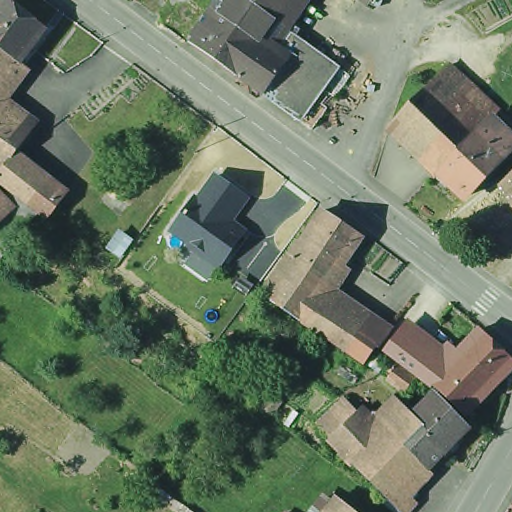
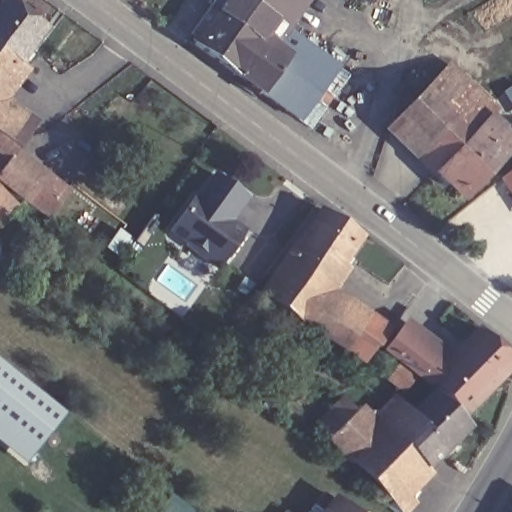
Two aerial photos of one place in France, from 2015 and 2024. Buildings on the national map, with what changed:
unchanged [(43,120),(23,152),(73,194),(49,219),(26,207),(0,267),(0,0),(11,0),(53,27),(13,100),(43,120)]
demolished [(174,0),(194,0),(204,7),(182,40),(158,23),(174,0)]
unchanged [(214,0),(224,0),(249,0),(288,0),(274,19),(259,39),(277,51),(291,33),(335,65),(296,119),(191,44),(197,35),(191,31),(212,0),(214,0)]
unchanged [(339,11),(322,0),(347,0),(339,11)]
unchanged [(496,110),(512,128),(512,158),(468,204),(436,175),(389,129),(451,60),(496,110)]
unchanged [(348,74),(309,128),(296,119),(335,65),(348,74)]
unchanged [(497,185),(512,171),(512,208),(497,185)]
unchanged [(209,254),(174,229),(195,199),(199,202),(218,175),(245,195),(229,217),(231,225),(244,234),(228,256),(223,263),(209,254)]
unchanged [(300,237),(319,209),(358,234),(338,263),(300,237)]
unchanged [(315,296),(374,335),(358,359),(261,295),(300,237),(338,263),(315,296)]
unchanged [(477,333),(512,366),(512,368),(492,390),(457,355),(477,333)]
unchanged [(439,375),(457,355),(492,390),(464,418),(429,384),(427,385),(426,387),(384,354),(398,337),(439,375)]
new [(25,467),(0,446),(0,358),(68,410),(25,467)]
unchanged [(412,381),(400,395),(384,382),(394,369),(412,381)]
unchanged [(404,408),(413,416),(432,397),(466,432),(426,472),(420,466),(383,430),(400,413),(404,408)]
unchanged [(383,506),(387,500),(328,442),(392,405),(400,413),(383,430),(420,466),(394,491),(412,506),(407,512),(390,512),(383,506)]
new [(159,511),(173,493),(197,512),(160,512),(159,511)]
unchanged [(331,495),(344,505),(349,498),(366,512),(318,512),(331,495)]
unchanged [(293,510),(295,512),(292,512),(293,510)]

